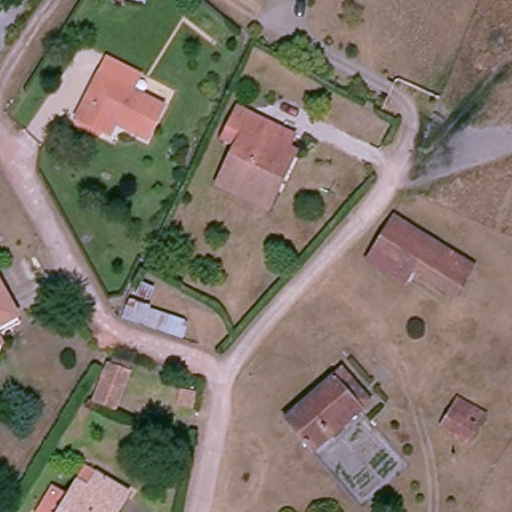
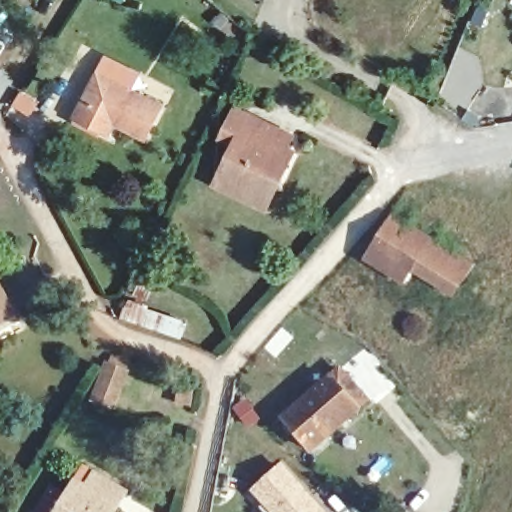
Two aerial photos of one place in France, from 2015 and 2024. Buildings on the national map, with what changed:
new [(122,5),(113,0),(125,0),(122,5)]
unchanged [(145,156),(106,137),(101,148),(70,133),(92,87),(100,72),(147,95),(141,109),(162,120),(145,156)]
unchanged [(297,135),(265,211),(215,190),(248,114),(297,135)]
unchanged [(477,269),(457,300),(413,274),(406,287),(367,262),(394,217),(477,269)]
unchanged [(0,263),(1,263),(34,321),(0,339),(0,263)]
unchanged [(315,452),(287,420),(342,372),(369,405),(315,452)]
unchanged [(467,445),(440,429),(455,403),(483,420),(467,445)]
new [(281,464),(325,512),(269,512),(251,492),(281,464)]
unchanged [(116,512),(41,512),(52,495),(68,506),(95,467),(130,491),(116,512)]

